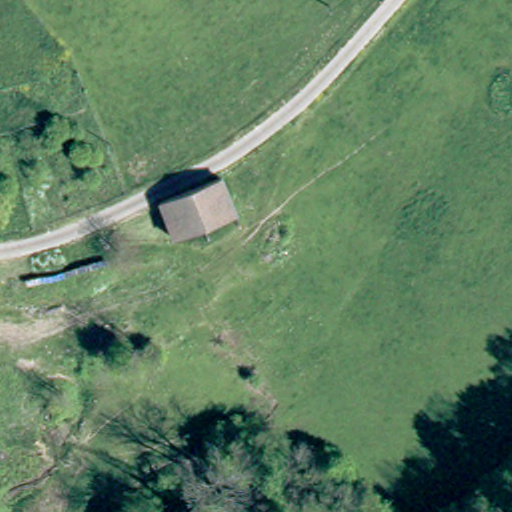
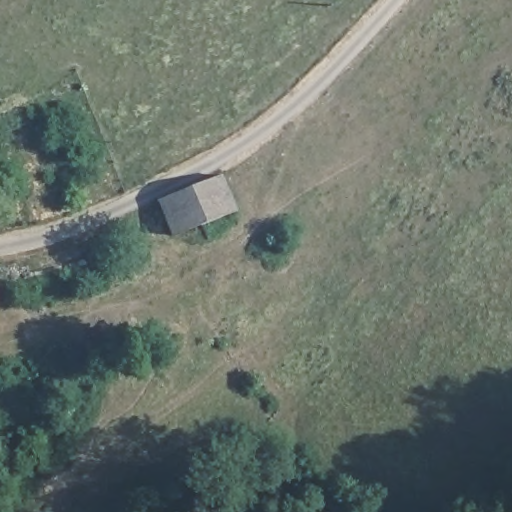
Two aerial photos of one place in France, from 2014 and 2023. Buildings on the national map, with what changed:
unchanged [(223,179),(238,217),(178,241),(164,204),(223,179)]
unchanged [(278,250),(263,232),(279,218),(294,236),(278,250)]

